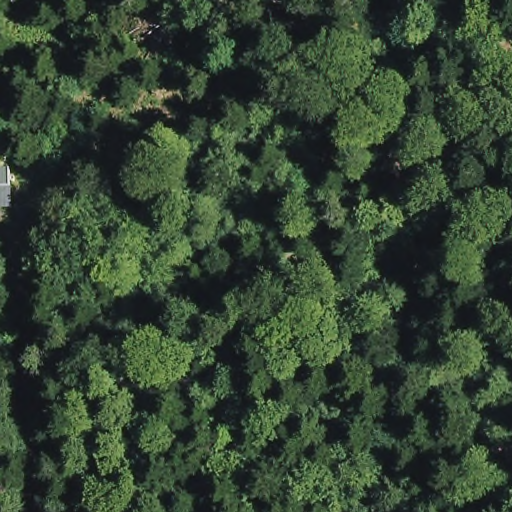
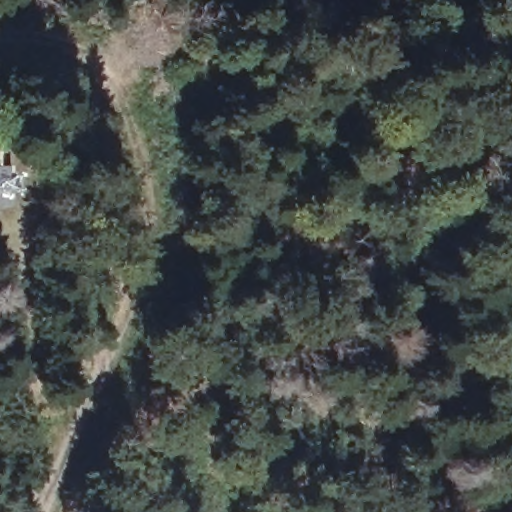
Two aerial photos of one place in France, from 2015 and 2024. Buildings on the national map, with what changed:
unchanged [(23,211),(0,212),(0,179),(21,179),(23,211)]
unchanged [(311,326),(296,326),(295,303),(310,302),(311,326)]

